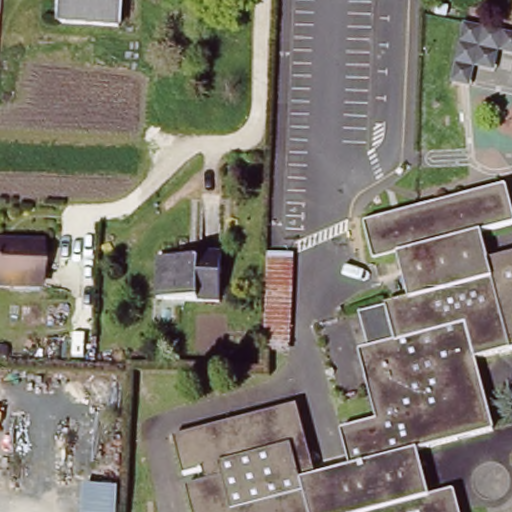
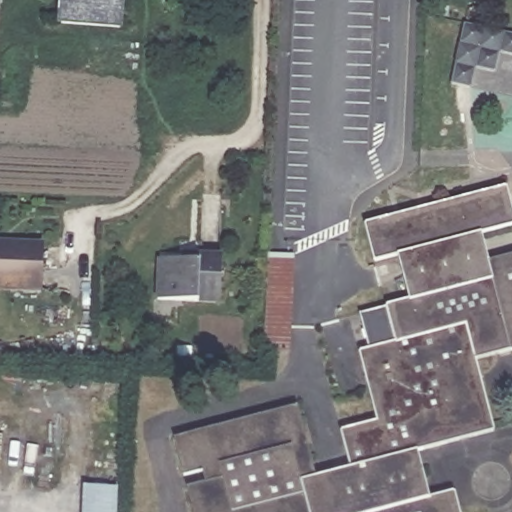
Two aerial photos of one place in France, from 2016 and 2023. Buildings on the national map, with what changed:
unchanged [(118,32),(59,27),(61,0),(120,0),(118,32)]
unchanged [(475,54),(455,49),(460,29),(480,33),(475,54)]
unchanged [(502,38),(512,41),(512,62),(497,58),(502,38)]
unchanged [(497,58),(492,77),(471,74),(475,54),(497,58)]
unchanged [(471,74),(467,94),(447,89),(451,70),(471,74)]
unchanged [(512,219),(480,227),(487,257),(512,251),(512,344),(475,354),(494,425),(417,445),(429,493),(454,487),(461,512),(196,512),(188,483),(207,477),(204,465),(184,470),(175,432),(299,400),(317,471),(350,462),(341,426),(377,416),(360,347),(395,338),(386,301),(409,295),(397,250),(374,256),(363,219),(505,180),(512,206),(512,219)]
unchanged [(35,241),(34,286),(0,285),(0,239),(35,241)]
unchanged [(215,297),(152,295),(154,258),(154,251),(195,254),(217,255),(215,297)]
unchanged [(292,257),(287,354),(260,351),(262,255),(292,257)]
unchanged [(118,512),(81,512),(82,484),(118,486),(118,512)]

